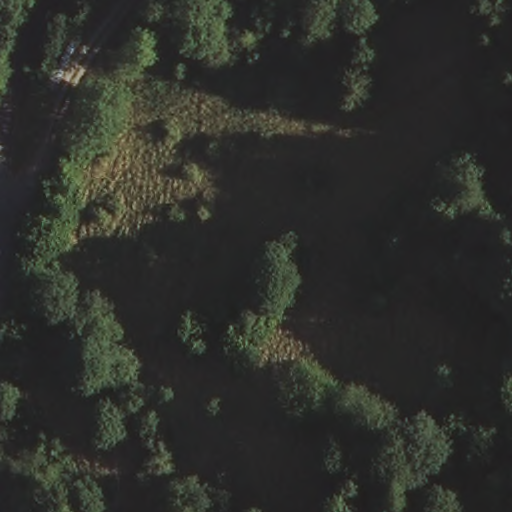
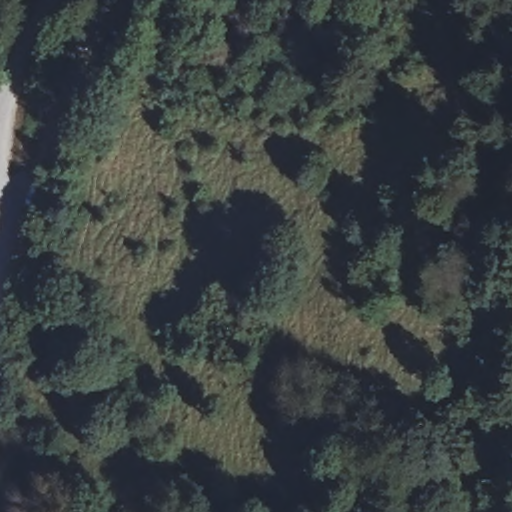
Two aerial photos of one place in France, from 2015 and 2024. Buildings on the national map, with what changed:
[]

